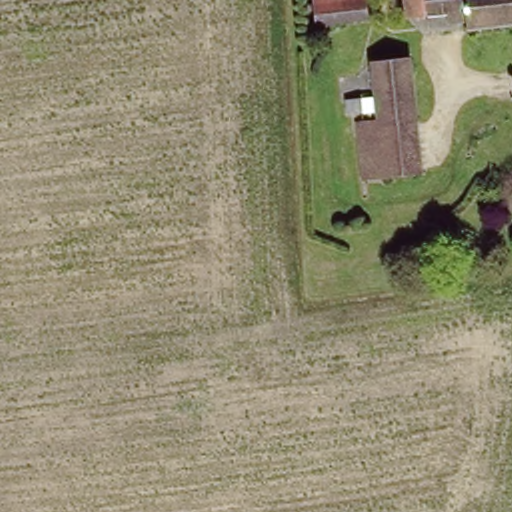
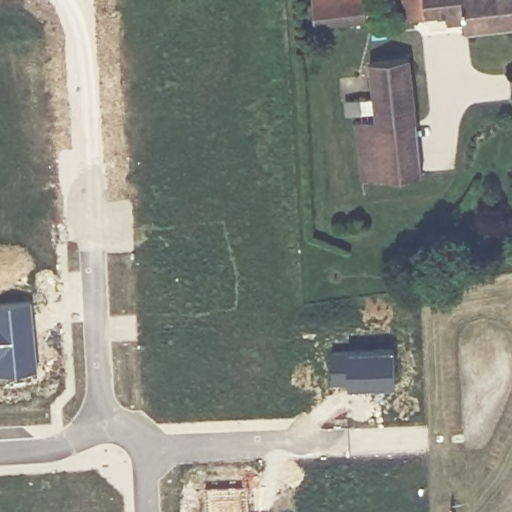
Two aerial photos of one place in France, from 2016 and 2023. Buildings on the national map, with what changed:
unchanged [(318,21),(316,0),(367,0),(368,16),(318,21)]
unchanged [(402,14),(401,0),(512,0),(512,23),(465,27),(463,15),(447,17),(446,10),(402,14)]
unchanged [(376,123),(382,175),(360,178),(355,119),(373,117),(367,59),(407,54),(415,119),(376,123)]
unchanged [(420,171),(382,175),(376,123),(415,119),(420,171)]
new [(33,331),(30,331),(30,340),(33,340),(36,370),(0,374),(0,304),(30,300),(33,331)]
new [(393,349),(395,384),(349,386),(349,382),(333,383),(331,351),(393,349)]

